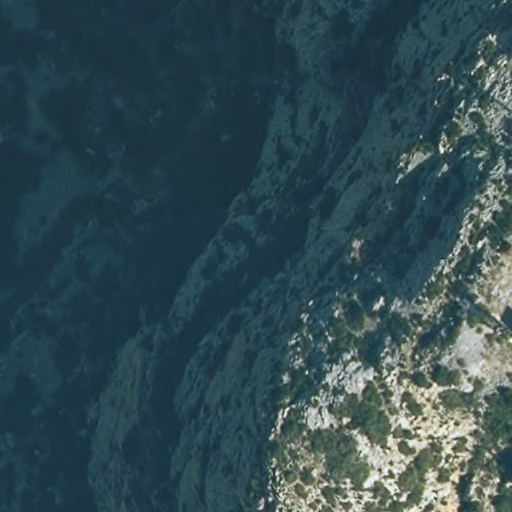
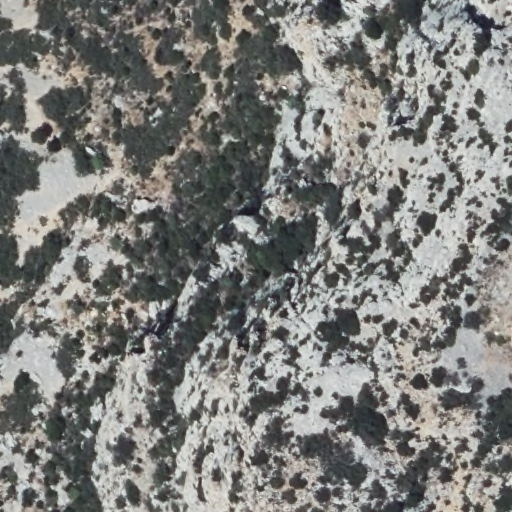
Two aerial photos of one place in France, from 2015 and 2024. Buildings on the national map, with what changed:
unchanged [(507,330),(512,325),(512,335),(507,330)]

